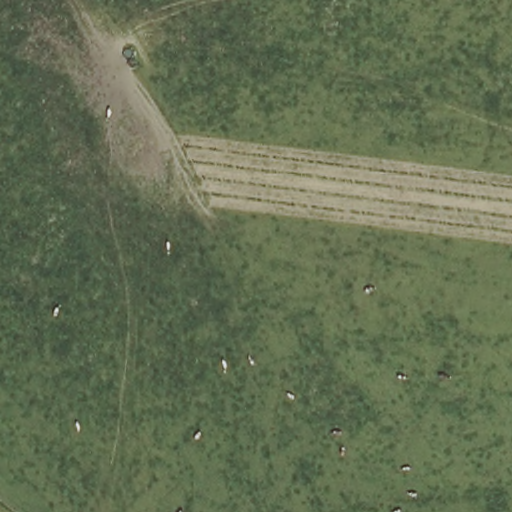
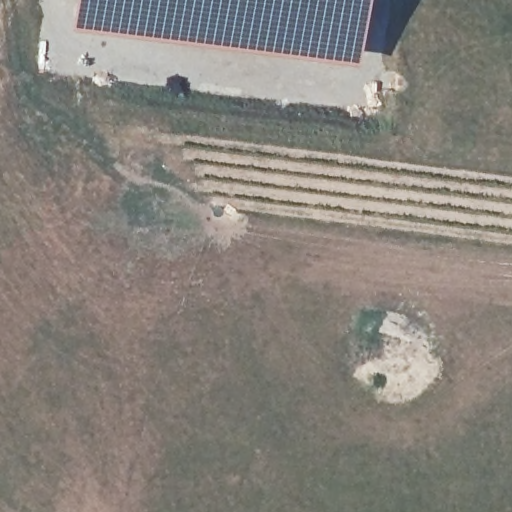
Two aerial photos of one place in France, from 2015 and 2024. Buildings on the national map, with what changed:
new [(72,0),(367,0),(357,65),(229,47),(69,29),(72,0)]

